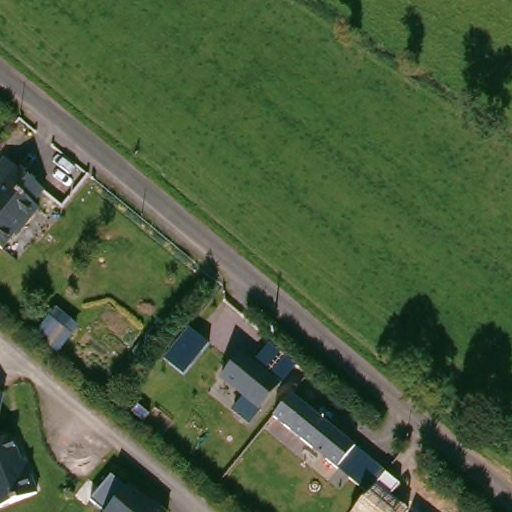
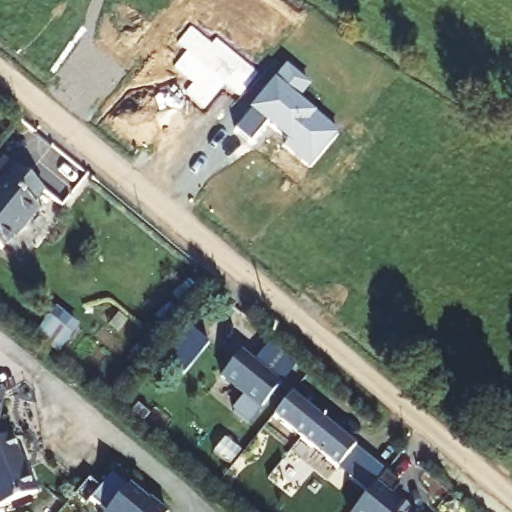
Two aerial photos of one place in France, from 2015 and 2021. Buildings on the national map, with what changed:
new [(287,65),(308,82),(296,98),(338,132),(310,166),(285,144),(290,138),(268,121),(250,142),(235,129),(287,65)]
unchanged [(35,206),(44,212),(26,234),(21,229),(0,255),(0,169),(6,161),(44,194),(35,206)]
unchanged [(50,307),(80,328),(60,354),(32,333),(50,307)]
unchanged [(160,358),(187,327),(210,345),(182,377),(160,358)]
unchanged [(243,400),(220,380),(240,354),(253,363),(270,344),(297,366),(248,427),(231,414),(243,400)]
unchanged [(0,393),(2,394),(0,409),(0,393)]
unchanged [(272,420),(291,395),(354,446),(399,485),(390,497),(409,511),(408,512),(354,512),(368,495),(336,471),(272,420)]
unchanged [(21,455),(36,494),(0,505),(0,441),(10,439),(14,454),(21,455)]
unchanged [(90,497),(111,472),(127,485),(129,483),(146,498),(149,495),(167,510),(165,512),(104,512),(106,510),(90,497)]

